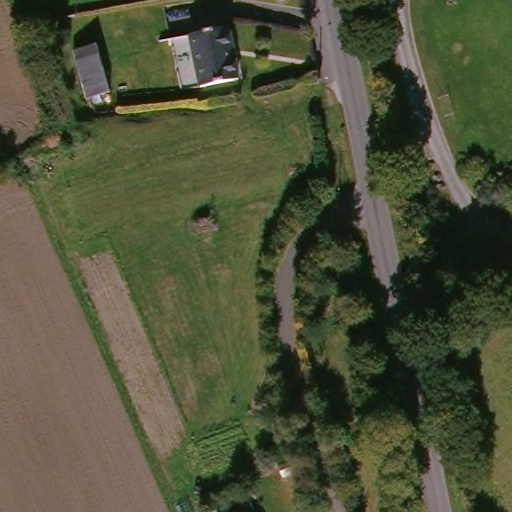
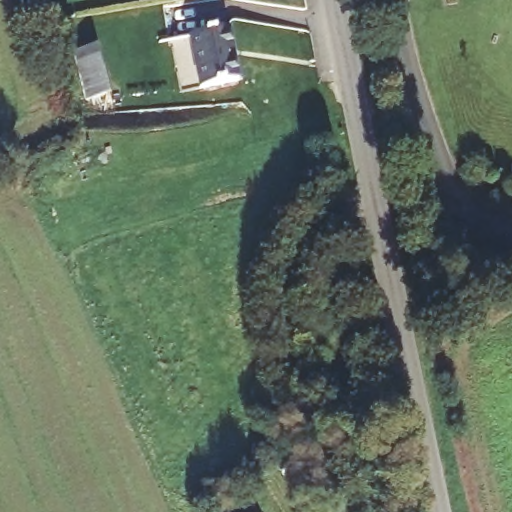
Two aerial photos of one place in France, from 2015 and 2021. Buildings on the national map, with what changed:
unchanged [(229,83),(191,87),(184,38),(223,33),(229,83)]
unchanged [(101,96),(77,100),(69,55),(92,50),(101,96)]

